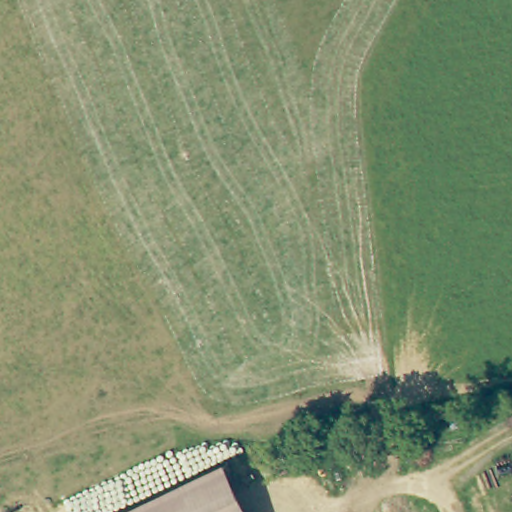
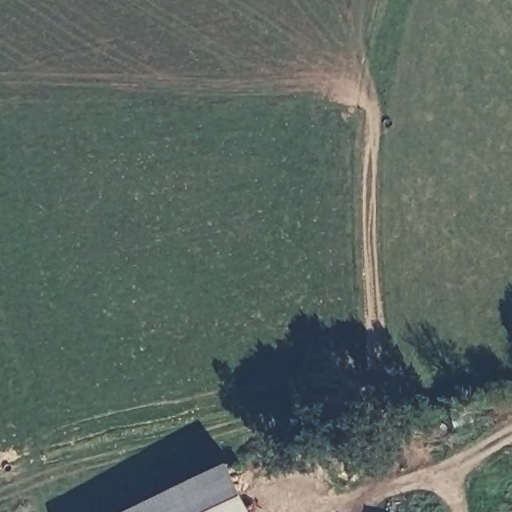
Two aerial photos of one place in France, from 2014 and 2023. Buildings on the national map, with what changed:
unchanged [(232,457),(260,512),(125,512),(223,462),(232,457)]

